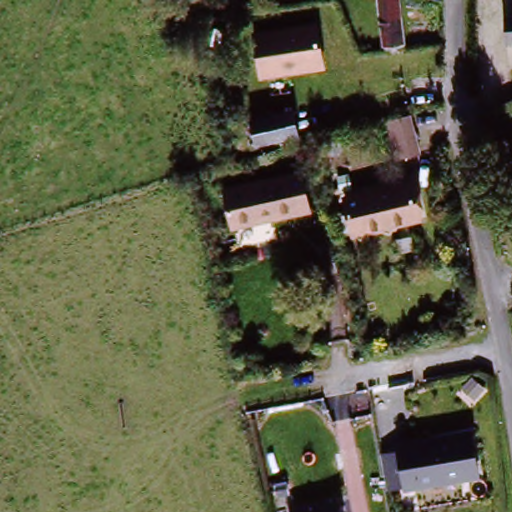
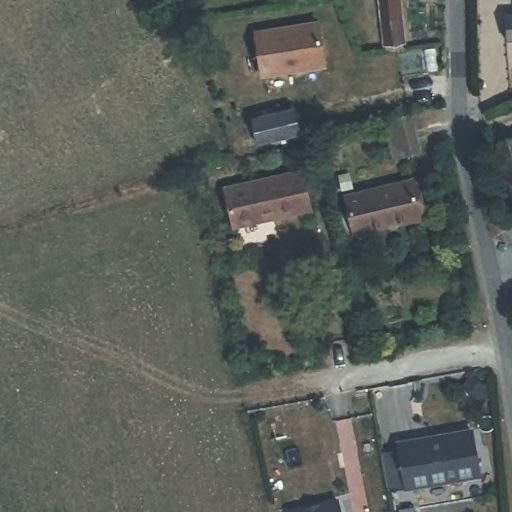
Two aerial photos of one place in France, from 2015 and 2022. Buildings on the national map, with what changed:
unchanged [(386,50),(378,0),(400,0),(406,46),(386,50)]
unchanged [(330,65),(263,76),(256,35),(323,24),(330,65)]
unchanged [(266,120),(312,105),(318,129),(271,142),(266,120)]
unchanged [(385,124),(414,107),(427,151),(398,159),(385,124)]
unchanged [(512,192),(505,155),(512,152),(512,192)]
unchanged [(301,172),(309,210),(231,226),(223,188),(301,172)]
unchanged [(416,181),(424,224),(364,236),(354,194),(416,181)]
unchanged [(402,491),(398,449),(439,445),(439,442),(472,440),(478,486),(402,491)]
unchanged [(338,512),(296,512),(319,508),(319,503),(336,500),(338,512)]

